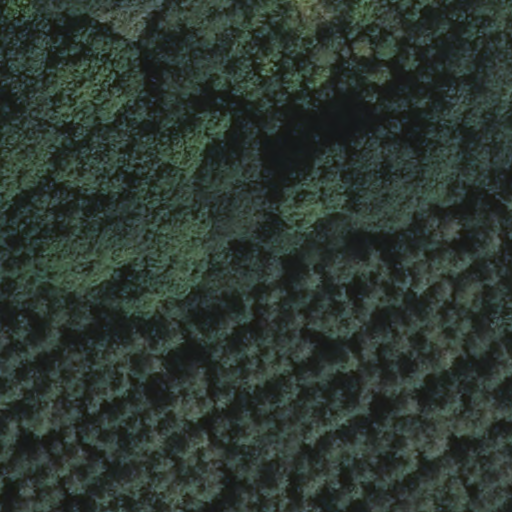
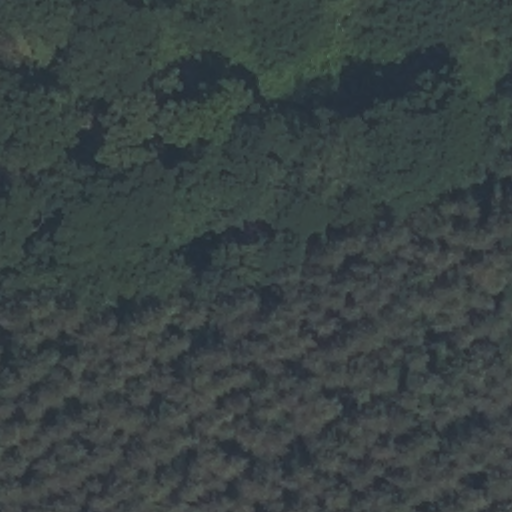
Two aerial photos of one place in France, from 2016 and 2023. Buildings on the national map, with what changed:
unchanged [(453,179),(428,195),(419,180),(445,164),(453,179)]

